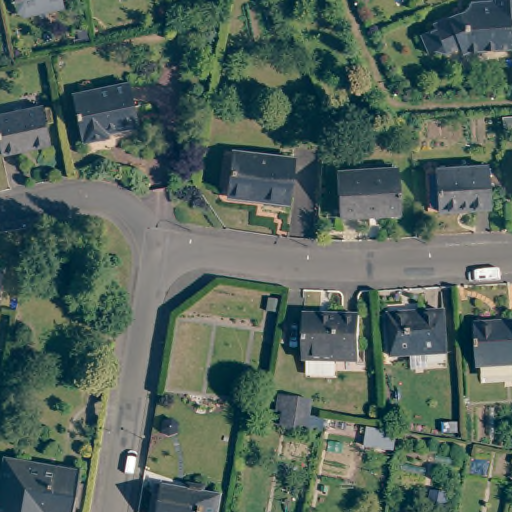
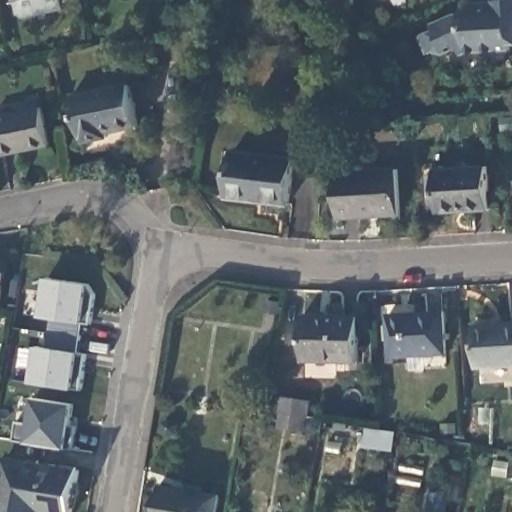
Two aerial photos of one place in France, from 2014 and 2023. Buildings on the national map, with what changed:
unchanged [(10,2),(9,0),(56,0),(58,11),(18,19),(12,15),(10,2)]
unchanged [(461,49),(458,43),(442,49),(441,45),(426,50),(420,30),(432,26),(430,20),(462,7),(470,0),(477,0),(512,0),(512,41),(510,41),(510,47),(461,49)]
unchanged [(129,85),(137,126),(117,130),(116,128),(107,130),(107,137),(85,141),(83,137),(81,137),(72,96),(129,85)]
unchanged [(42,109),(50,145),(1,155),(0,150),(0,117),(42,109)]
unchanged [(288,204),(262,201),(262,200),(227,195),(232,152),(293,160),(288,204)]
unchanged [(487,166),(491,207),(438,211),(437,194),(430,194),(429,174),(436,174),(436,169),(487,166)]
unchanged [(400,215),(340,218),(337,174),(397,170),(400,215)]
unchanged [(2,269),(0,288),(0,269),(2,269)]
new [(32,381),(36,347),(47,348),(51,317),(42,317),(47,278),(87,285),(95,293),(91,323),(81,321),(77,353),(86,354),(81,390),(72,388),(32,381)]
unchanged [(281,297),(280,307),(268,305),(270,295),(281,297)]
unchanged [(445,311),(447,352),(392,355),(390,315),(445,311)]
unchanged [(358,361),(303,358),(304,315),(358,316),(358,361)]
unchanged [(512,365),(478,367),(475,325),(512,323),(512,365)]
unchanged [(277,412),(279,397),(311,401),(308,416),(307,432),(281,429),(281,412),(277,412)]
new [(16,422),(29,425),(32,399),(72,405),(69,426),(75,427),(72,447),(66,446),(27,440),(14,438),(16,422)]
unchanged [(80,467),(72,511),(43,506),(42,512),(0,512),(0,495),(7,455),(80,467)]
unchanged [(220,495),(216,512),(155,512),(161,485),(220,495)]

